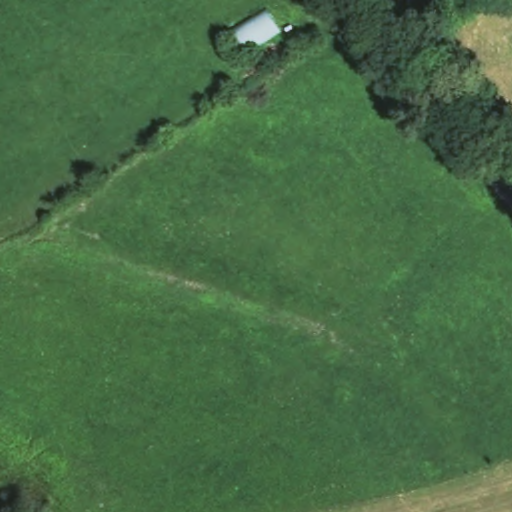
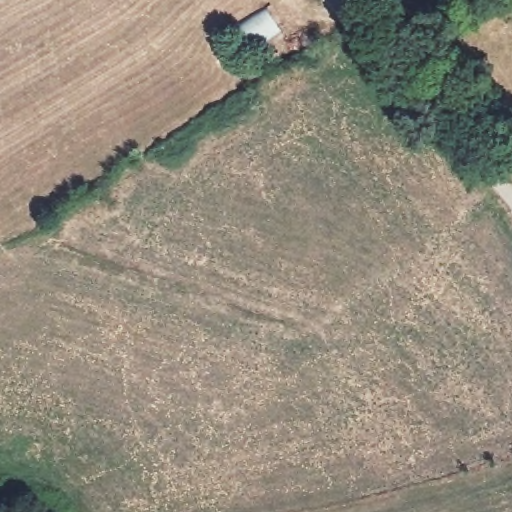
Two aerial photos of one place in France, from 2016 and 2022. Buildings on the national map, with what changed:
unchanged [(271,44),(241,64),(222,35),(266,6),(284,35),(271,44)]

